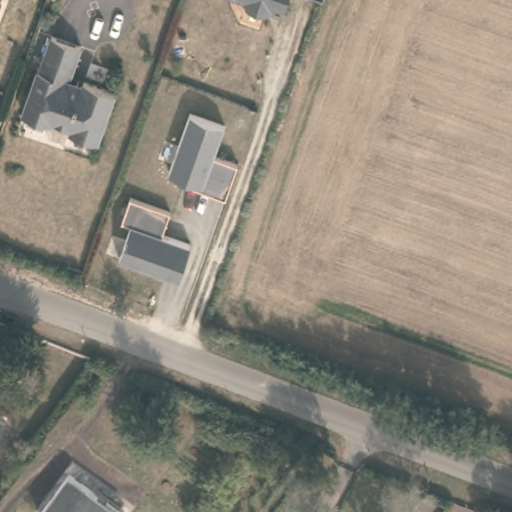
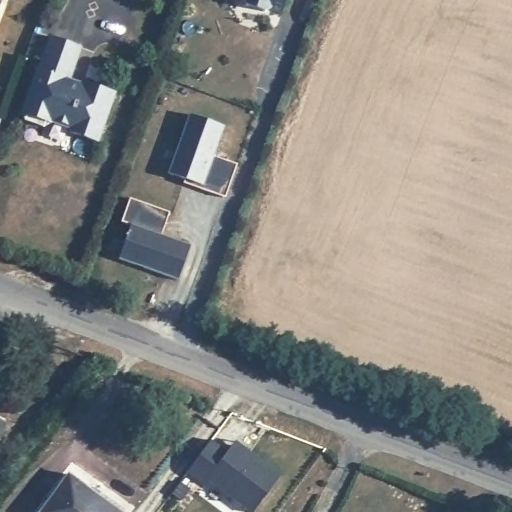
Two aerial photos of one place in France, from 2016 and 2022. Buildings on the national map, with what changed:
unchanged [(268,8),(266,14),(244,7),(244,0),(285,0),(281,13),(268,8)]
unchanged [(69,78),(83,82),(84,79),(116,89),(99,139),(72,130),(72,126),(52,119),(51,122),(45,125),(26,119),(24,113),(39,68),(40,68),(51,35),(80,44),(69,78)]
unchanged [(214,157),(236,165),(227,197),(171,176),(191,119),(223,129),(214,157)]
unchanged [(169,214),(161,237),(188,247),(177,278),(121,259),(134,224),(122,221),(130,199),(169,214)]
unchanged [(1,423),(0,426),(0,423),(1,423)]
new [(252,512),(207,478),(204,485),(187,472),(212,438),(229,451),(236,441),(282,475),(254,512),(252,512)]
unchanged [(120,512),(42,512),(70,475),(120,512)]

